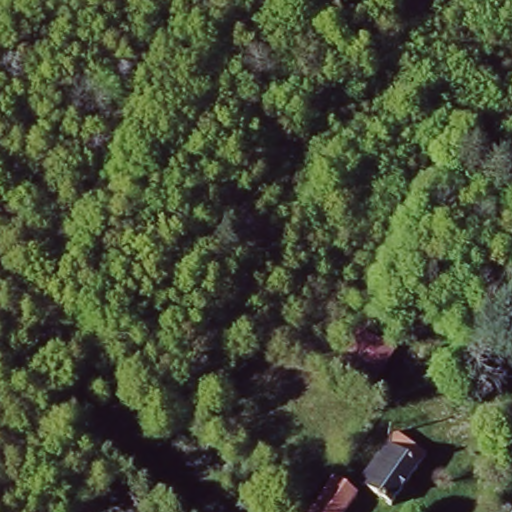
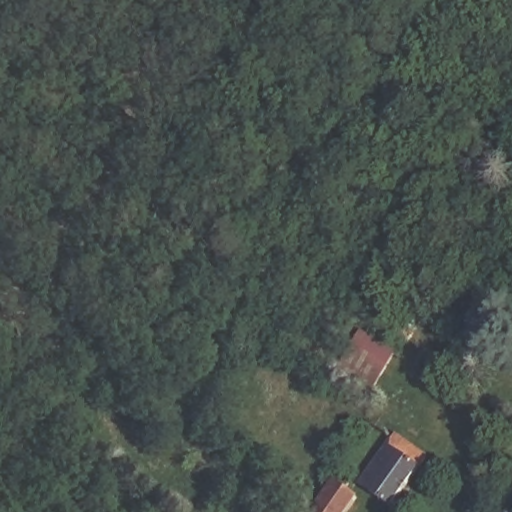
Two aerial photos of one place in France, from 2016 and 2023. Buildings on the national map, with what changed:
unchanged [(356,382),(364,367),(354,362),(365,341),(396,357),(378,392),(356,382)]
unchanged [(359,487),(389,436),(419,455),(387,503),(359,487)]
unchanged [(336,477),(349,486),(342,498),(350,503),(345,512),(316,512),(336,477)]

